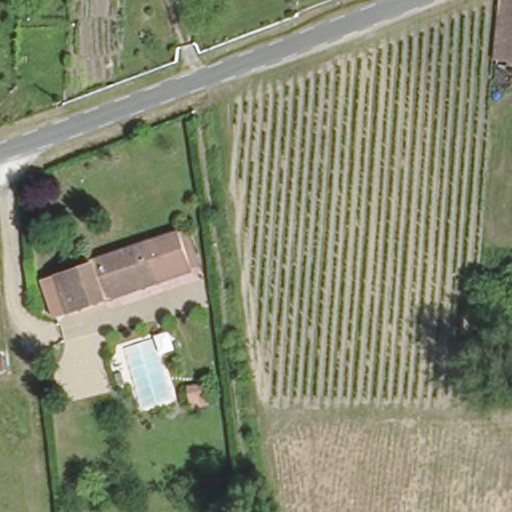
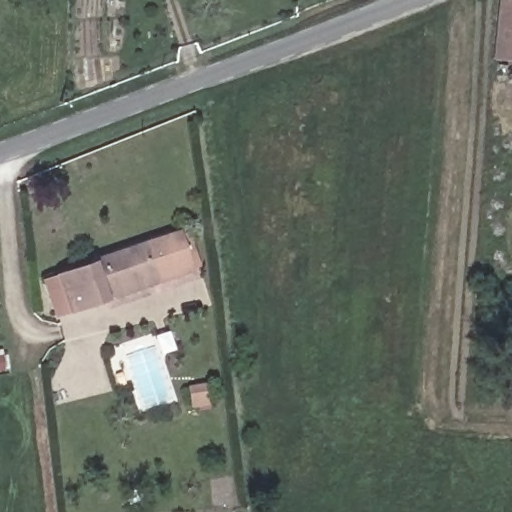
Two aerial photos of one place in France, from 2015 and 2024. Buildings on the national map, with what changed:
unchanged [(497,0),(512,0),(512,57),(491,55),(497,0)]
unchanged [(40,281),(54,275),(92,262),(90,258),(175,229),(182,226),(196,267),(189,270),(139,287),(105,300),(67,313),(53,317),(40,281)]
unchanged [(502,300),(512,302),(512,330),(499,328),(502,300)]
unchanged [(213,390),(219,408),(203,414),(196,396),(213,390)]

